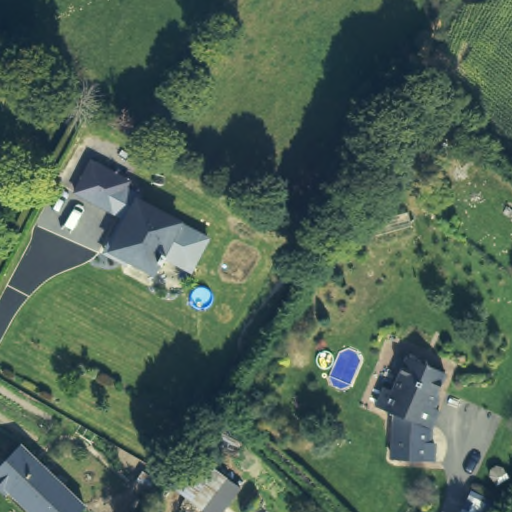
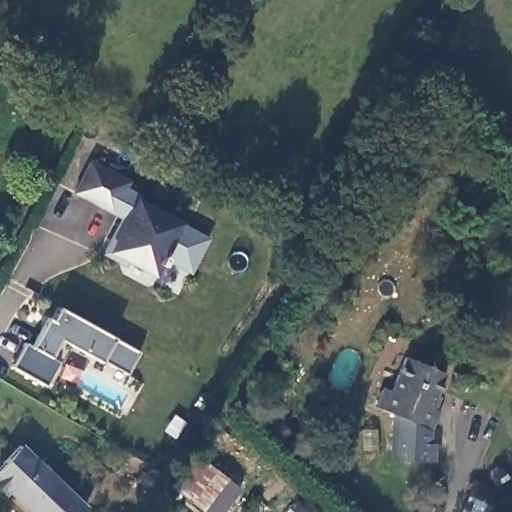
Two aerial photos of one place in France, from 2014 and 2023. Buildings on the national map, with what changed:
unchanged [(437,121),(426,135),(406,120),(417,105),(437,121)]
unchanged [(124,179),(121,185),(137,194),(134,199),(205,235),(190,264),(174,256),(172,260),(162,255),(159,260),(156,258),(151,267),(124,254),(109,246),(113,237),(109,235),(116,220),(121,222),(127,210),(112,203),(110,207),(72,187),(86,159),(124,179)]
new [(127,375),(101,360),(69,343),(46,386),(11,367),(24,342),(31,346),(45,317),(52,322),(60,308),(114,337),(139,352),(127,375)]
unchanged [(426,399),(434,403),(423,425),(422,457),(422,460),(388,458),(390,410),(371,401),(380,382),(387,380),(399,355),(438,373),(433,385),(426,399)]
unchanged [(13,493),(9,497),(0,488),(0,474),(25,448),(88,512),(32,512),(13,493)]
unchanged [(225,512),(205,512),(174,489),(197,456),(242,489),(225,512)]

